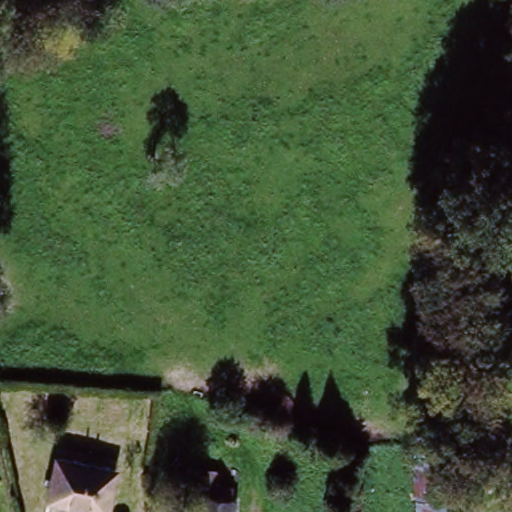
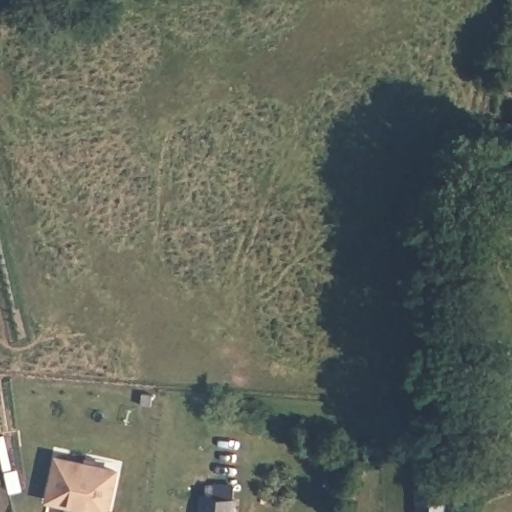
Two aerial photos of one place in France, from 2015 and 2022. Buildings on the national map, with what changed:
unchanged [(440,434),(437,512),(411,512),(415,432),(440,434)]
unchanged [(61,471),(116,477),(114,508),(57,501),(61,471)]
unchanged [(233,484),(229,512),(203,512),(207,481),(233,484)]

